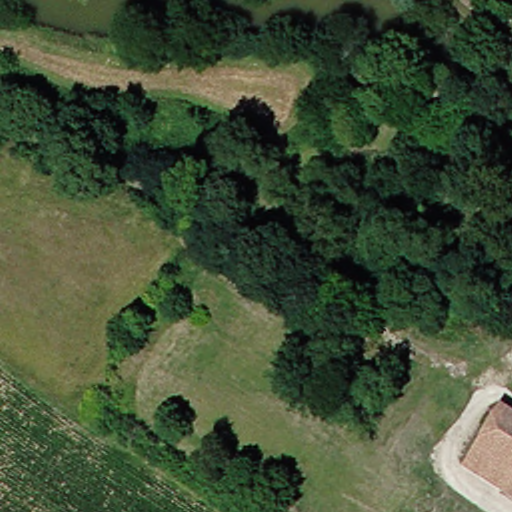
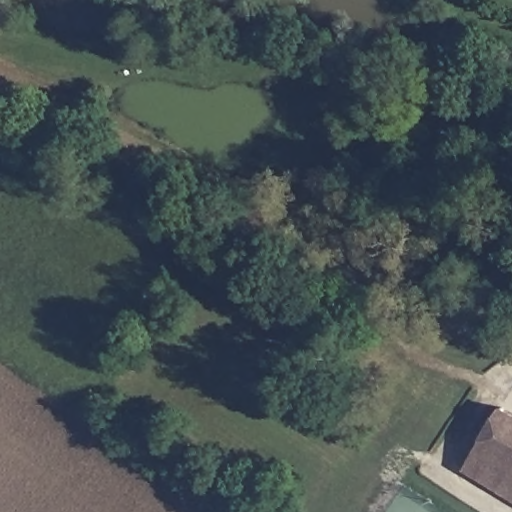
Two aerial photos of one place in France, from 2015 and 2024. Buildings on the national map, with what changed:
unchanged [(150,310),(166,320),(117,397),(113,404),(99,395),(150,310)]
unchanged [(481,441),(491,423),(497,413),(512,422),(512,506),(447,468),(470,433),(481,441)]

